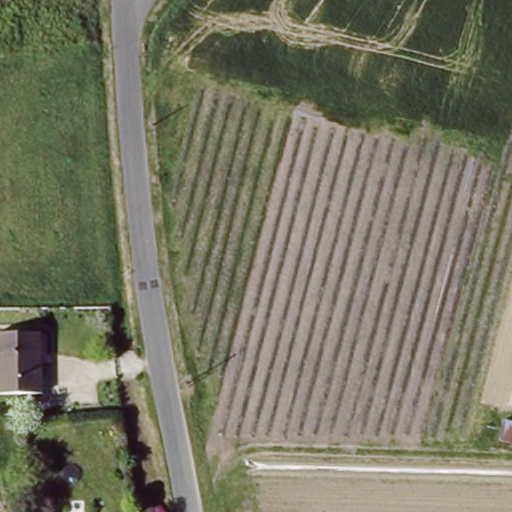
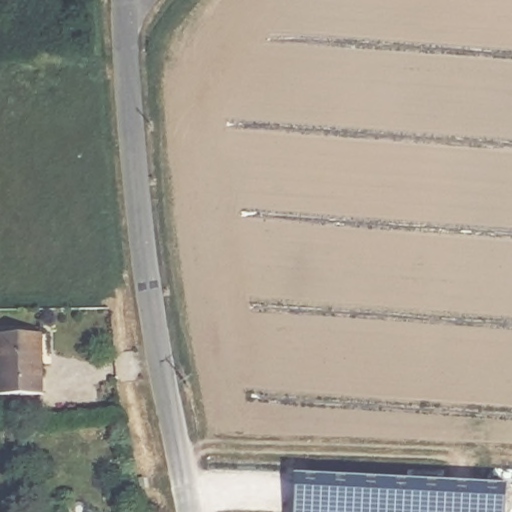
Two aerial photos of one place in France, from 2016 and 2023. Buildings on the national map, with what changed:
unchanged [(0,338),(22,336),(37,335),(40,392),(27,393),(0,395),(0,338)]
new [(507,512),(295,512),(296,474),(508,485),(507,512)]

